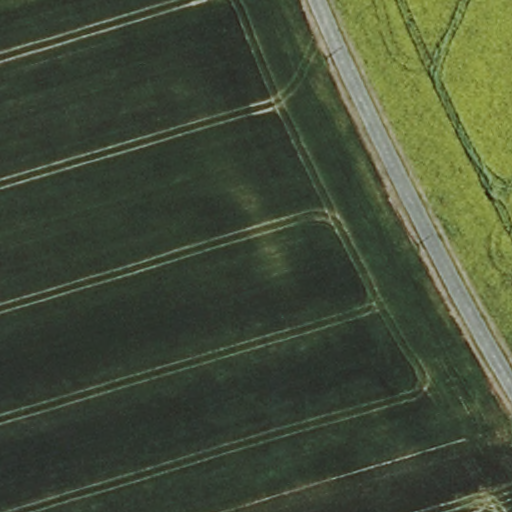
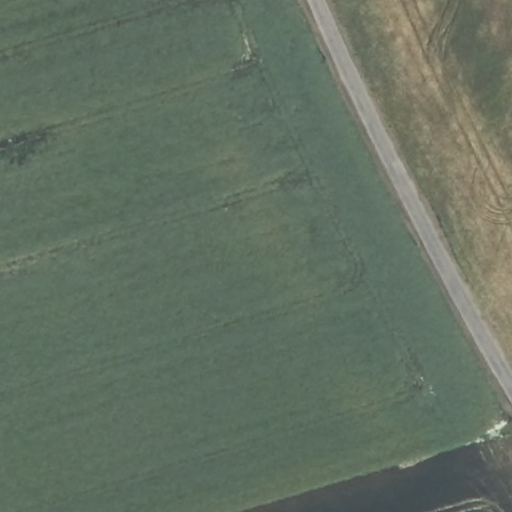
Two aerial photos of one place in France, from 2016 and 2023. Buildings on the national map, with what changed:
[]

